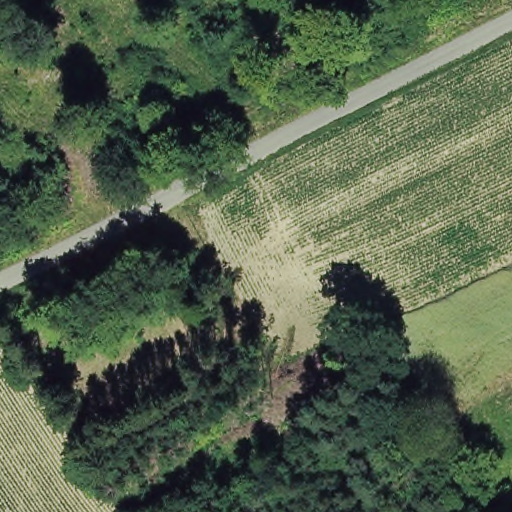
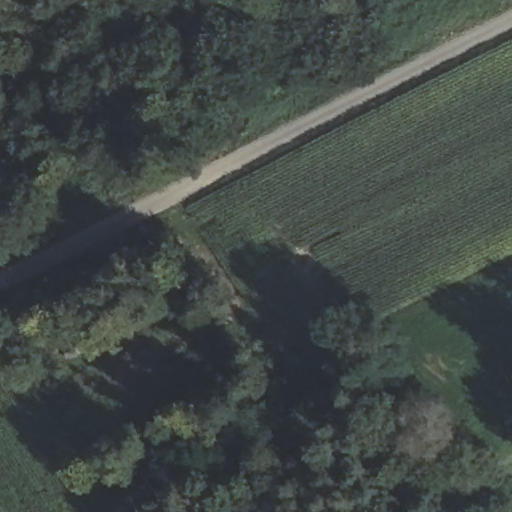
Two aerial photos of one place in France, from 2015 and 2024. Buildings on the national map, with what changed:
unchanged [(68,327),(60,312),(83,300),(91,314),(68,327)]

